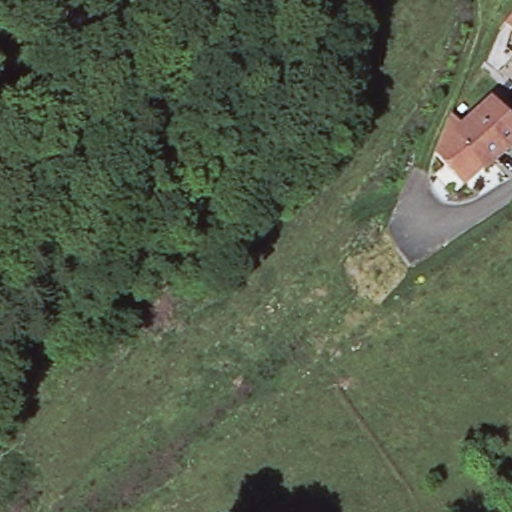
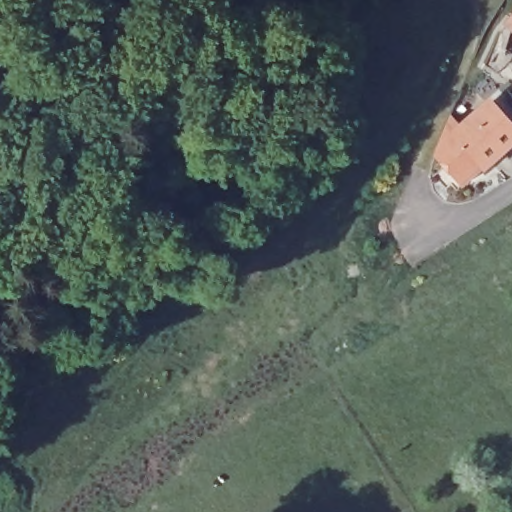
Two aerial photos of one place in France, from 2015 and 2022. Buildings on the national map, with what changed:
unchanged [(511,26),(512,24),(512,27),(511,26)]
unchanged [(463,136),(468,131),(466,130),(496,102),(512,121),(512,148),(490,168),(489,167),(463,136)]
unchanged [(489,167),(468,186),(440,155),(448,135),(453,122),(456,119),(466,130),(468,131),(463,136),(489,167)]

